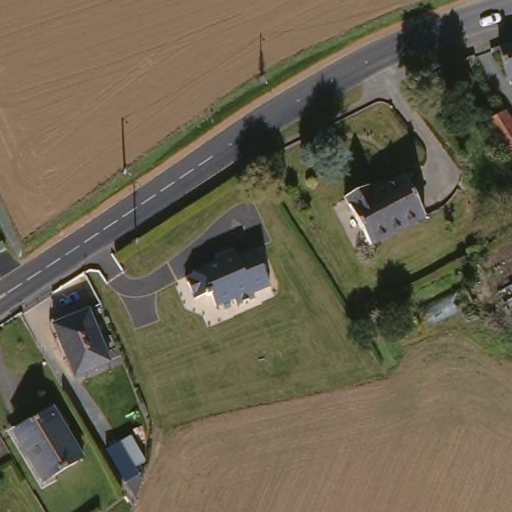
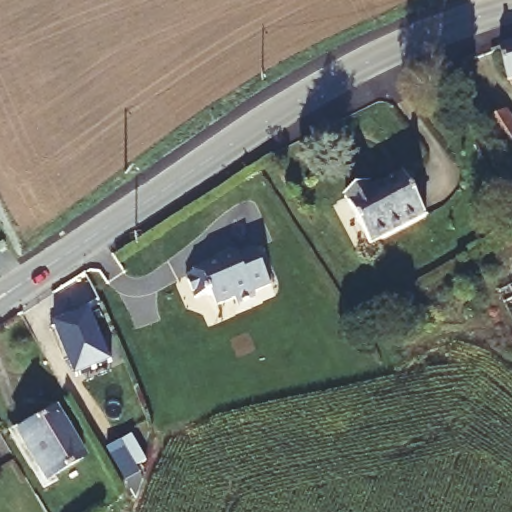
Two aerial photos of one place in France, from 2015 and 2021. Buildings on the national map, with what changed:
unchanged [(499,46),(512,43),(512,79),(506,80),(499,46)]
unchanged [(486,122),(498,115),(504,111),(512,125),(512,156),(508,158),(496,137),(486,122)]
unchanged [(364,242),(346,193),(368,184),(371,191),(402,179),(418,221),(364,242)]
unchanged [(182,272),(252,245),(269,286),(256,290),(251,298),(236,304),(233,300),(217,306),(211,291),(193,296),(182,272)]
unchanged [(58,326),(88,313),(106,360),(76,372),(58,326)]
unchanged [(20,432),(48,415),(75,460),(47,477),(20,432)]
unchanged [(136,468),(143,480),(135,497),(108,450),(132,435),(147,461),(136,468)]

